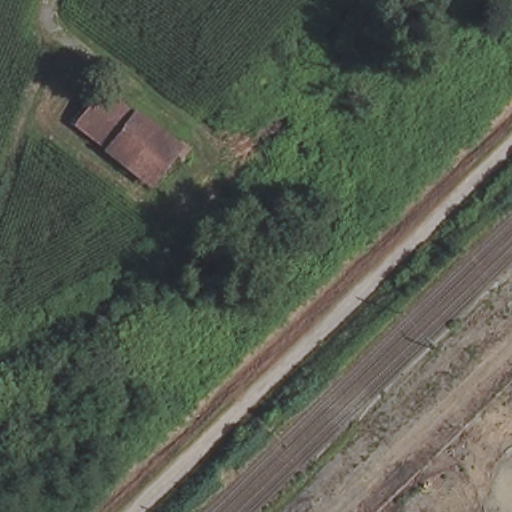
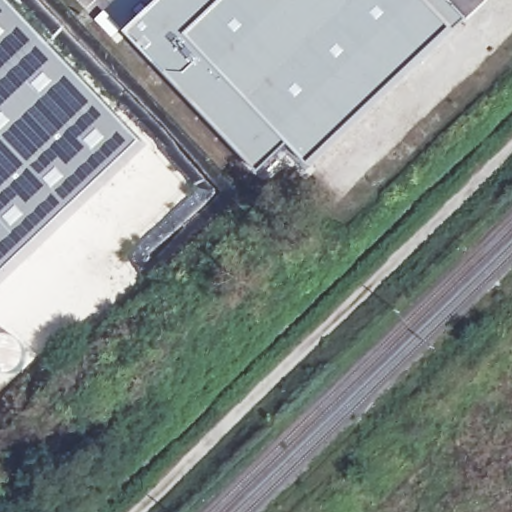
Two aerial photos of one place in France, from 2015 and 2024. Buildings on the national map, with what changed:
new [(30,254),(0,284),(0,0),(11,0),(148,144),(30,254)]
new [(426,0),(453,29),(407,69),(307,165),(290,146),(260,175),(125,33),(160,0),(426,0)]
new [(453,29),(426,0),(448,0),(465,18),(453,29)]
demolished [(80,130),(109,94),(184,153),(155,189),(112,155),(80,130)]

